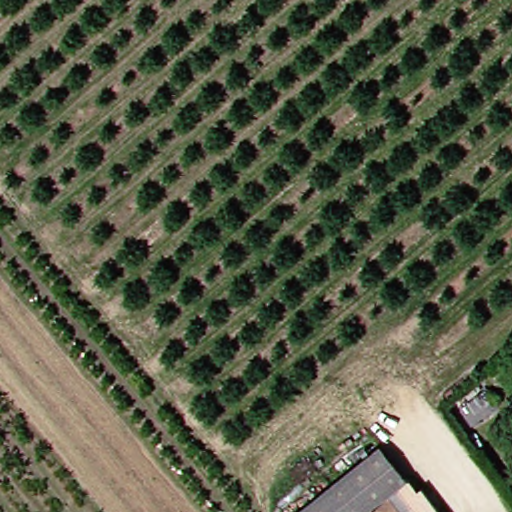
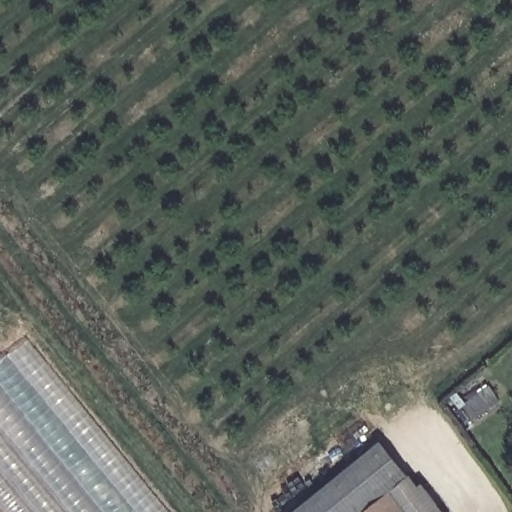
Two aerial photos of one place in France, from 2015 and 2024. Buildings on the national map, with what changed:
new [(171,512),(7,512),(0,503),(0,362),(30,340),(171,512)]
unchanged [(512,391),(512,392),(485,409),(477,398),(475,392),(502,375),(504,377),(512,391)]
unchanged [(301,508),(384,440),(403,465),(413,478),(375,512),(305,512),(301,508)]
unchanged [(413,478),(422,485),(443,512),(375,512),(413,478)]
new [(301,508),(305,512),(295,512),(301,508)]

